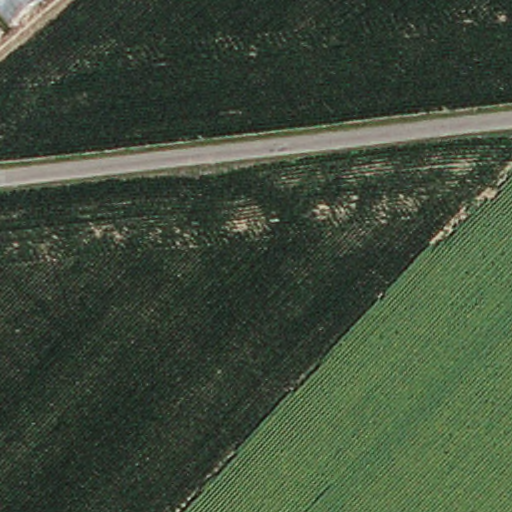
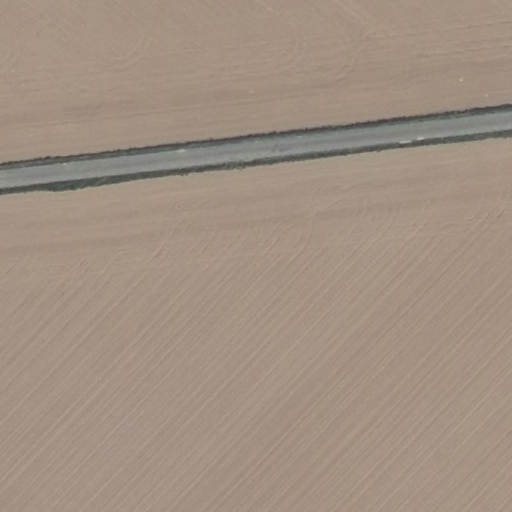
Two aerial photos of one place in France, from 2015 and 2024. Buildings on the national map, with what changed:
unchanged [(0,13),(0,0),(25,0),(5,19),(0,13)]

